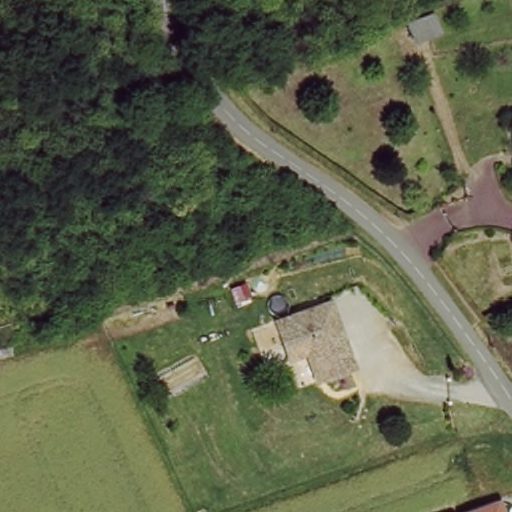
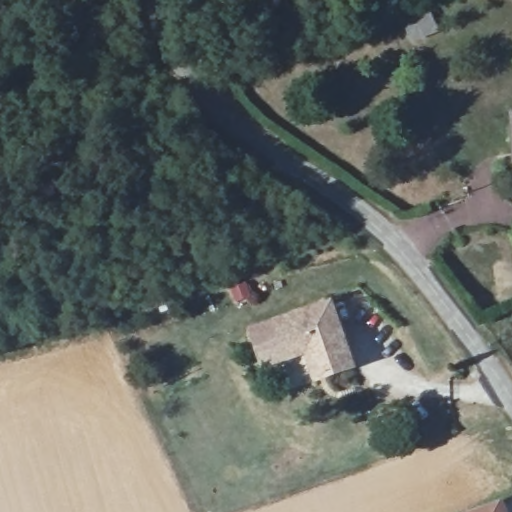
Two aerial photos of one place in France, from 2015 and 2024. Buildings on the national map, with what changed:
unchanged [(353,372),(322,383),(311,352),(286,361),(273,325),(328,307),(353,372)]
unchanged [(502,505),(504,512),(481,512),(502,505)]

